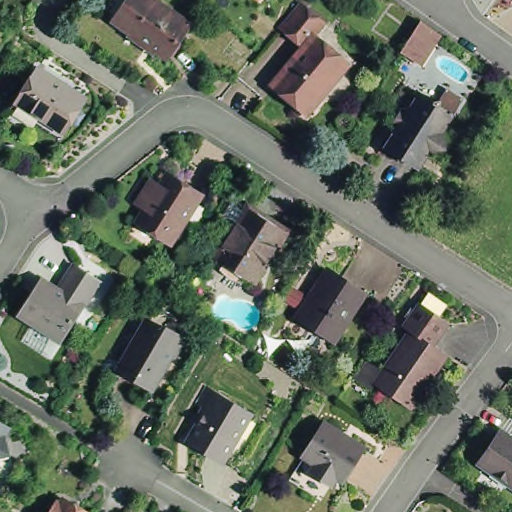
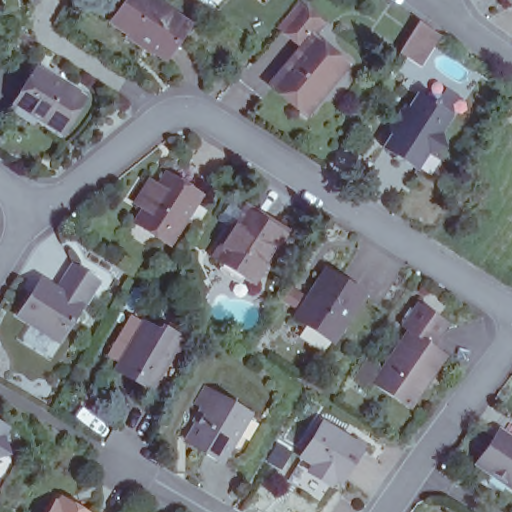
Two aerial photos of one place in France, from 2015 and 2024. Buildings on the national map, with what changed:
unchanged [(171,18),(173,16),(188,27),(165,60),(113,23),(129,0),(143,0),(171,18)]
unchanged [(325,23),(312,39),(343,65),(307,108),(274,81),(303,48),(277,27),(298,1),(325,23)]
unchanged [(467,91),(429,67),(425,72),(400,54),(422,24),(443,37),(435,49),(475,77),(467,91)]
unchanged [(85,98),(62,133),(19,105),(41,71),(85,98)]
unchanged [(446,114),(436,131),(439,147),(423,152),(411,168),(379,146),(391,127),(386,122),(384,124),(381,112),(391,110),(394,108),(400,112),(413,93),(446,114)]
unchanged [(135,221),(139,215),(144,207),(136,201),(147,183),(150,179),(158,184),(166,172),(200,194),(172,238),(169,243),(135,221)]
unchanged [(218,263),(239,231),(227,224),(223,226),(222,221),(224,219),(225,219),(233,206),(234,201),(238,202),(239,205),(251,212),(289,235),(278,253),(268,267),(256,287),(218,263)]
unchanged [(81,260),(107,276),(68,335),(27,309),(41,288),(49,275),(55,278),(66,284),(81,260)]
unchanged [(364,294),(334,340),(296,317),(326,270),(364,294)]
unchanged [(447,321),(432,343),(446,352),(409,406),(374,382),(408,329),(402,325),(418,302),(447,321)]
unchanged [(148,318),(164,325),(167,321),(187,334),(178,349),(175,349),(158,379),(123,359),(148,318)]
unchanged [(231,460),(195,439),(214,408),(204,403),(213,388),(223,393),(259,413),(231,460)]
unchanged [(16,421),(12,427),(17,448),(0,453),(0,413),(16,421)]
unchanged [(366,442),(345,475),(339,471),(334,479),(313,466),(318,458),(305,450),(327,417),(366,442)]
unchanged [(493,426),(512,439),(512,483),(473,456),(493,426)]
unchanged [(69,502),(71,498),(87,506),(97,512),(58,512),(65,500),(69,502)]

